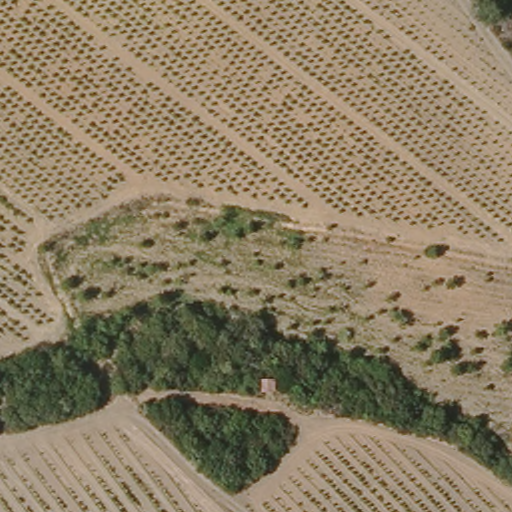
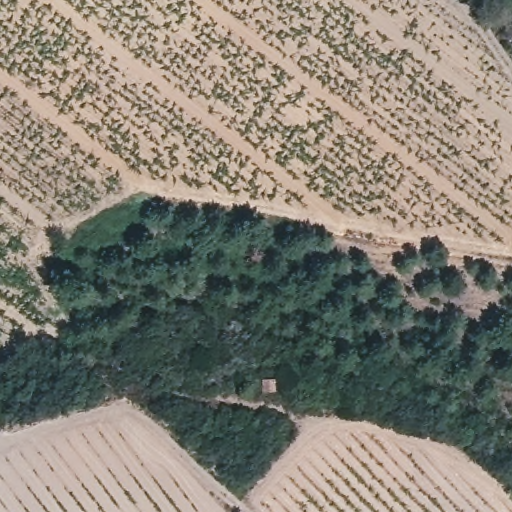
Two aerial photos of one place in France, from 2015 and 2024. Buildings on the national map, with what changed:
unchanged [(269,379),(269,393),(258,391),(258,377),(269,379)]

